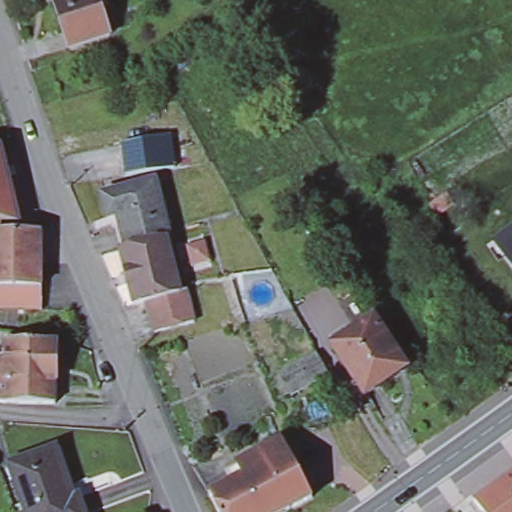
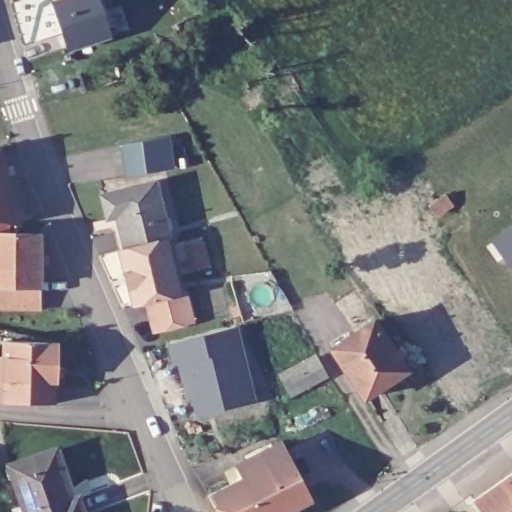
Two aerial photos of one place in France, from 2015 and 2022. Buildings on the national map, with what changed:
unchanged [(95,0),(107,27),(69,45),(49,2),(54,0),(95,0)]
new [(125,175),(120,145),(172,138),(177,167),(125,175)]
unchanged [(7,179),(0,180),(0,152),(7,179)]
unchanged [(119,217),(107,222),(99,192),(157,176),(160,191),(164,207),(171,236),(172,241),(169,241),(182,297),(180,297),(137,308),(123,253),(128,251),(125,240),(119,217)]
unchanged [(7,179),(18,225),(0,222),(0,180),(7,179)]
unchanged [(448,200),(451,204),(445,207),(435,215),(428,206),(439,199),(445,195),(448,200)]
unchanged [(512,226),(512,262),(495,237),(512,226)]
unchanged [(40,235),(40,268),(40,287),(0,286),(0,235),(40,235)]
unchanged [(372,323),(398,362),(392,366),(398,375),(363,399),(330,350),(372,323)]
new [(238,328),(255,402),(197,418),(192,397),(186,400),(178,365),(174,366),(170,345),(238,328)]
unchanged [(55,400),(3,398),(0,397),(0,372),(3,372),(3,362),(5,337),(55,339),(55,372),(55,375),(55,400)]
unchanged [(331,376),(292,397),(278,373),(316,351),(331,376)]
unchanged [(55,450),(62,472),(60,473),(70,501),(77,499),(82,512),(25,512),(10,466),(55,450)]
unchanged [(285,450),(313,505),(300,512),(290,512),(265,460),(285,450)]
unchanged [(258,463),(256,459),(260,456),(263,461),(265,460),(290,512),(260,512),(246,483),(240,472),(258,463)]
unchanged [(512,473),(512,512),(483,512),(474,500),(490,488),(493,486),(508,476),(512,473)]
unchanged [(213,501),(246,483),(260,512),(218,512),(213,501)]

